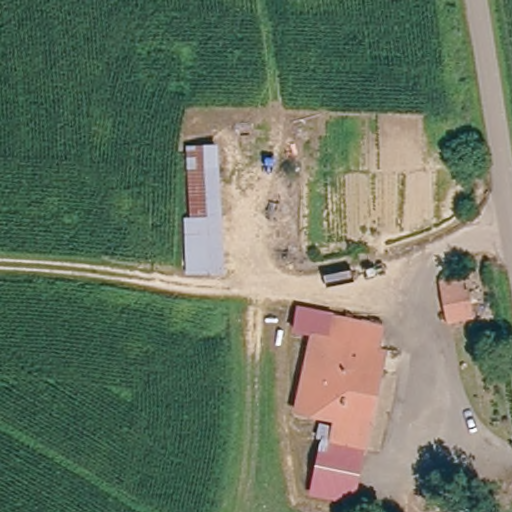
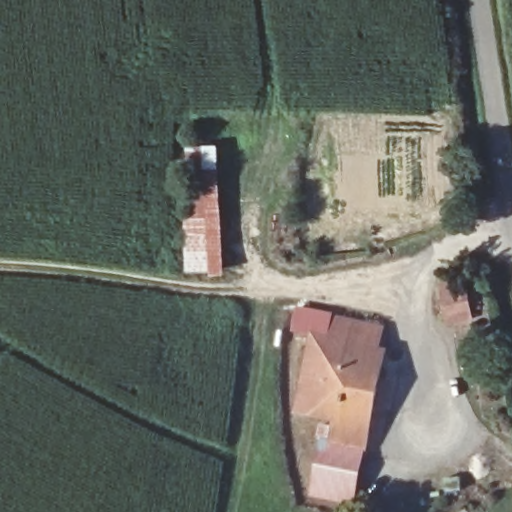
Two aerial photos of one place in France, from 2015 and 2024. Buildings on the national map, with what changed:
unchanged [(226,272),(190,273),(186,217),(190,216),(187,146),(221,143),(226,272)]
unchanged [(451,292),(468,290),(470,298),(480,296),(481,308),(471,310),(472,321),(454,324),(451,292)]
unchanged [(322,438),(317,438),(320,420),(293,414),(311,334),(292,329),(297,303),(386,324),(381,347),(387,348),(356,505),(311,495),(322,438)]

